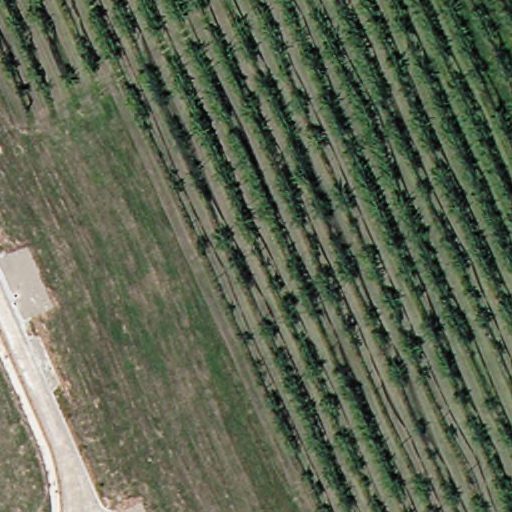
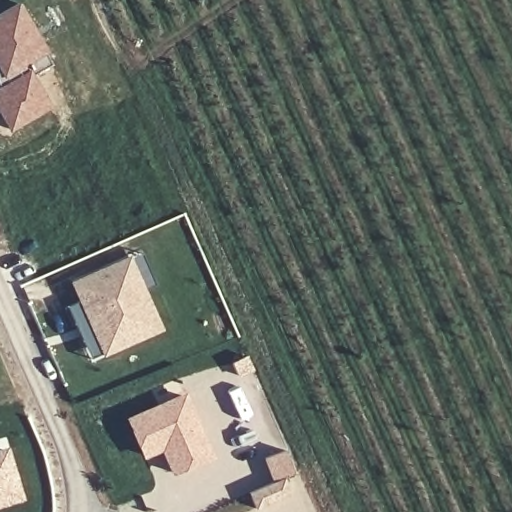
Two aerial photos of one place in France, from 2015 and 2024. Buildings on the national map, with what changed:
new [(51,65),(34,75),(53,107),(10,132),(0,116),(0,15),(21,2),(50,52),(45,55),(51,65)]
new [(75,280),(130,256),(144,249),(158,282),(144,287),(155,311),(145,315),(152,329),(106,348),(92,355),(69,302),(82,297),(75,280)]
new [(185,393),(211,455),(174,471),(163,445),(145,453),(129,417),(185,393)]
new [(20,497),(0,503),(0,451),(6,449),(20,497)]
new [(264,457),(284,449),(293,472),(282,476),(289,492),(255,507),(248,491),(273,480),(264,457)]

